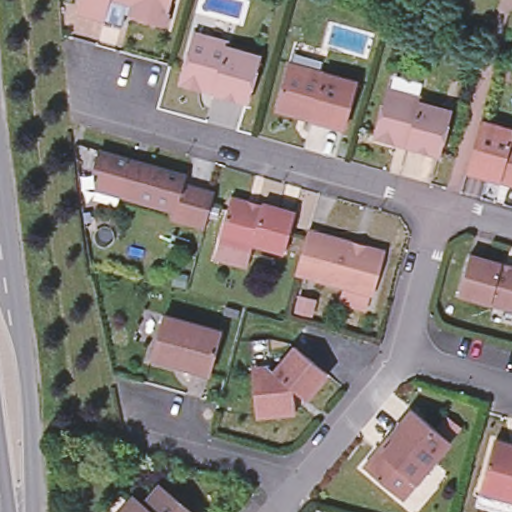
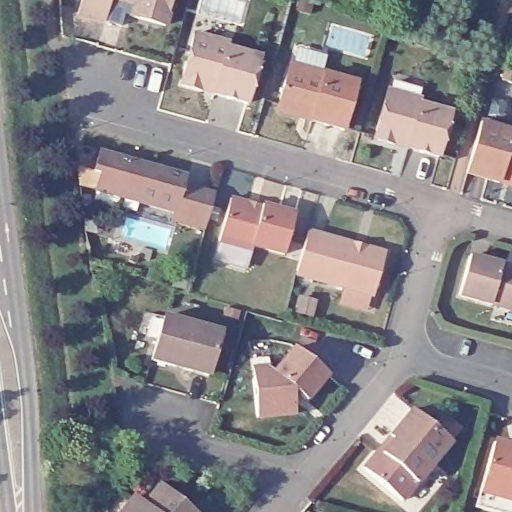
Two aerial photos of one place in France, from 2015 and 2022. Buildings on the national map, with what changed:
unchanged [(80,0),(109,0),(104,19),(77,12),(80,0)]
unchanged [(130,15),(132,4),(120,0),(171,0),(165,24),(130,15)]
unchanged [(178,79),(193,27),(227,37),(225,41),(259,51),(245,97),(212,87),(202,84),(178,79)]
unchanged [(280,106),(277,100),(288,58),(355,76),(342,123),(309,114),(294,110),(280,106)]
unchanged [(373,137),(387,88),(420,97),(419,102),(450,110),(437,155),(405,145),(395,143),(373,137)]
unchanged [(480,116),(502,122),(500,125),(512,129),(512,133),(510,138),(512,138),(512,184),(510,183),(511,179),(500,175),(498,180),(465,171),(480,116)]
unchanged [(99,173),(92,171),(97,151),(185,175),(174,211),(95,190),(99,173)]
unchanged [(230,197),(247,202),(248,205),(260,207),(262,203),(295,212),(284,252),(252,244),(250,249),(218,240),(230,197)]
unchanged [(354,242),(353,245),(362,247),(362,244),(384,250),(372,293),(295,272),(307,229),(354,242)]
unchanged [(493,302),(457,293),(467,258),(468,254),(484,257),(500,262),(512,265),(512,308),(493,302)]
unchanged [(159,315),(215,330),(204,374),(147,359),(159,315)]
unchanged [(300,412),(262,415),(258,378),(267,366),(272,365),(278,370),(299,345),(332,372),(312,398),(303,392),(299,397),(300,412)]
unchanged [(446,440),(430,460),(398,498),(360,466),(375,448),(385,435),(407,408),(446,440)]
unchanged [(482,500),(485,485),(499,435),(512,439),(512,508),(482,500)]
unchanged [(126,502),(136,491),(145,498),(162,479),(201,512),(118,512),(126,502)]

